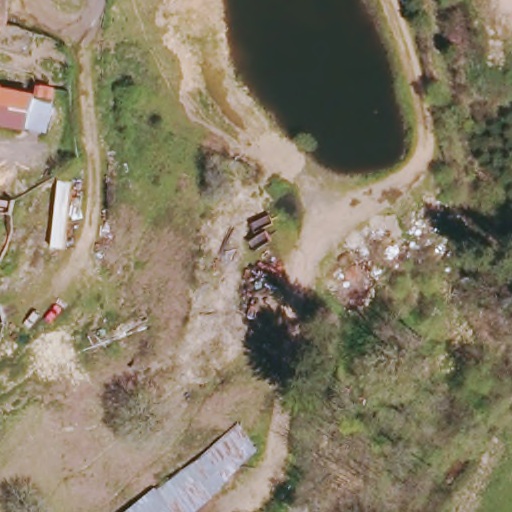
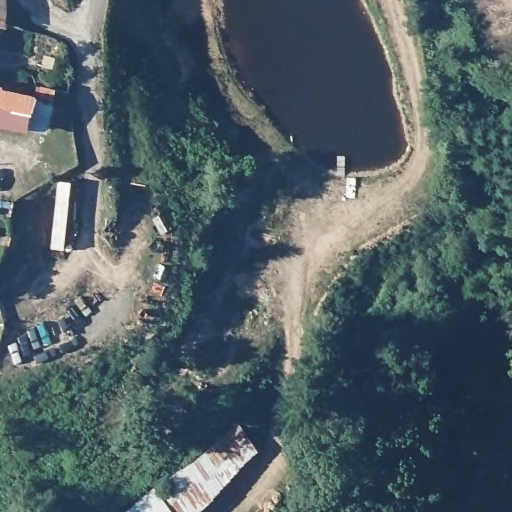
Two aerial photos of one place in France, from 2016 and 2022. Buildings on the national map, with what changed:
unchanged [(0,23),(0,0),(5,0),(5,25),(0,23)]
unchanged [(0,80),(2,76),(17,79),(15,91),(34,95),(27,127),(0,122),(0,80)]
unchanged [(195,512),(128,512),(234,428),(256,452),(195,512)]

